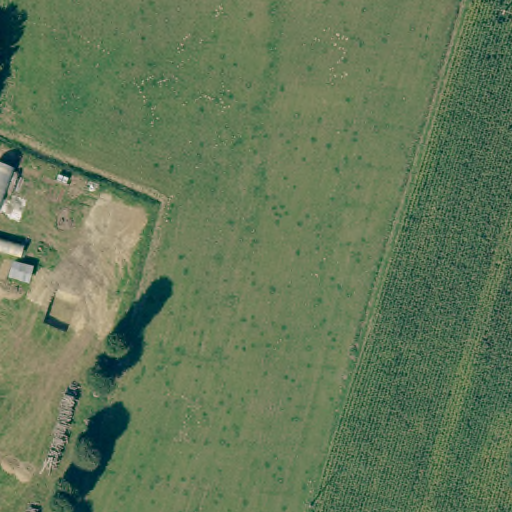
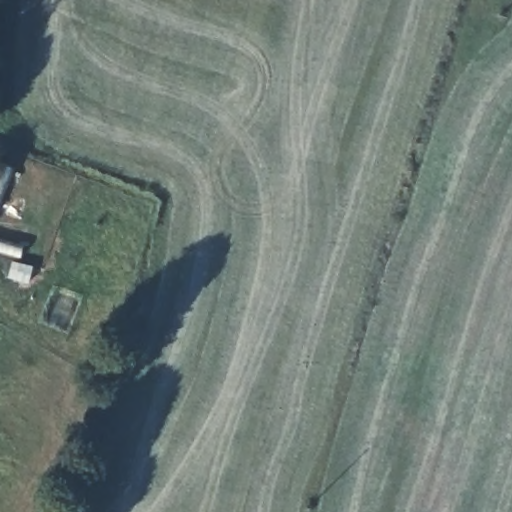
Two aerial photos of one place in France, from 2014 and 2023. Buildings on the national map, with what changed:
unchanged [(0,152),(1,151),(17,157),(0,217),(0,152)]

